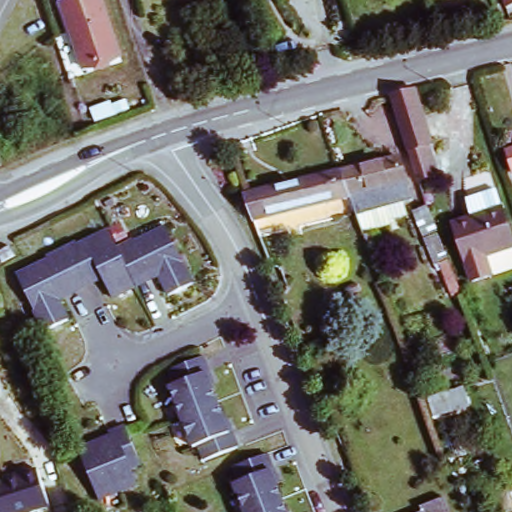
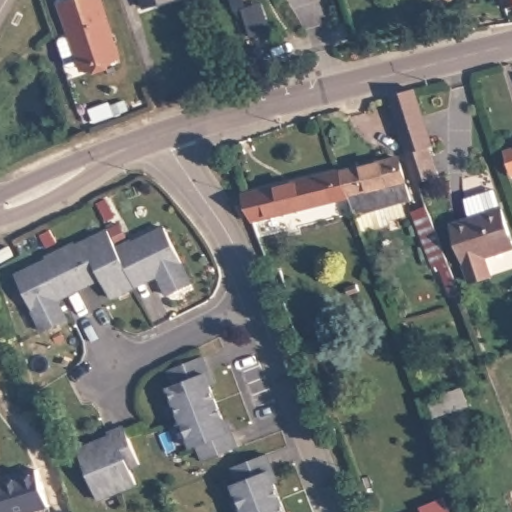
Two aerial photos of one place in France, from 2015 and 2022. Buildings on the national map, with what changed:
unchanged [(65,11),(96,0),(101,0),(122,61),(85,73),(65,11)]
unchanged [(507,0),(512,0),(512,7),(510,8),(507,0)]
unchanged [(412,166),(389,99),(418,91),(437,144),(428,146),(432,160),(412,166)]
unchanged [(497,146),(512,141),(512,167),(505,170),(497,146)]
unchanged [(392,219),(365,228),(352,191),(343,169),(402,155),(414,195),(404,199),(409,213),(392,219)]
unchanged [(343,169),(352,191),(259,218),(248,193),(343,169)]
unchanged [(435,260),(430,262),(412,217),(410,210),(422,206),(425,212),(455,292),(449,295),(435,260)]
unchanged [(512,244),(467,260),(455,224),(500,208),(512,241),(512,244)]
unchanged [(160,225),(188,280),(165,293),(152,267),(130,279),(114,247),(160,225)]
unchanged [(72,239),(75,242),(105,227),(114,247),(130,279),(132,284),(109,296),(96,271),(75,282),(57,247),(72,239)]
unchanged [(65,318),(41,330),(13,276),(44,260),(42,257),(57,247),(75,282),(52,293),(65,318)]
unchanged [(5,258),(0,261),(0,251),(5,258)]
unchanged [(170,386),(178,383),(172,370),(205,353),(210,364),(207,372),(218,400),(183,416),(170,386)]
unchanged [(230,447),(208,457),(202,442),(195,445),(183,416),(218,400),(230,428),(234,426),(242,441),(230,447)]
unchanged [(123,424),(140,464),(130,468),(135,481),(97,498),(77,452),(92,449),(97,444),(95,442),(107,436),(107,434),(123,424)]
unchanged [(230,486),(246,479),(240,463),(263,454),(270,471),(267,476),(277,501),(250,512),(240,512),(230,486)]
unchanged [(33,465),(47,509),(35,512),(0,512),(0,475),(33,465)]
unchanged [(424,509),(422,504),(443,496),(449,512),(415,512),(424,509)]
unchanged [(277,501),(282,512),(250,512),(277,501)]

